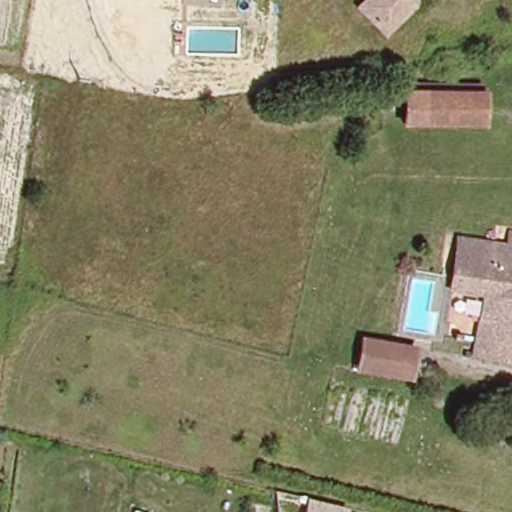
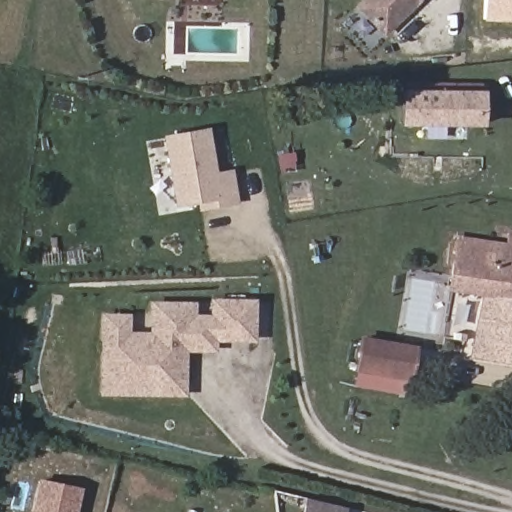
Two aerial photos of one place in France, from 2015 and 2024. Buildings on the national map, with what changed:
unchanged [(353,9),(361,0),(413,0),(382,35),(353,9)]
new [(484,0),(512,0),(512,22),(484,21),(484,0)]
unchanged [(432,128),(411,127),(409,102),(408,91),(484,88),(484,100),(484,126),(432,128)]
new [(198,204),(176,208),(163,136),(210,128),(218,172),(234,170),(240,206),(200,213),(198,204)]
unchanged [(473,288),(454,286),(461,238),(495,240),(497,228),(507,229),(512,230),(512,357),(477,352),(483,316),(485,301),(472,299),(473,288)]
new [(256,343),(218,343),(218,354),(189,353),(187,398),(101,396),(102,313),(131,313),(131,331),(151,333),(151,302),(195,303),(195,310),(214,319),(213,302),(253,302),(253,340),(256,343)]
unchanged [(411,374),(357,367),(360,340),(415,346),(411,374)]
new [(40,479),(82,488),(77,512),(33,512),(40,479)]
new [(347,508),(346,512),(302,512),(305,498),(347,508)]

